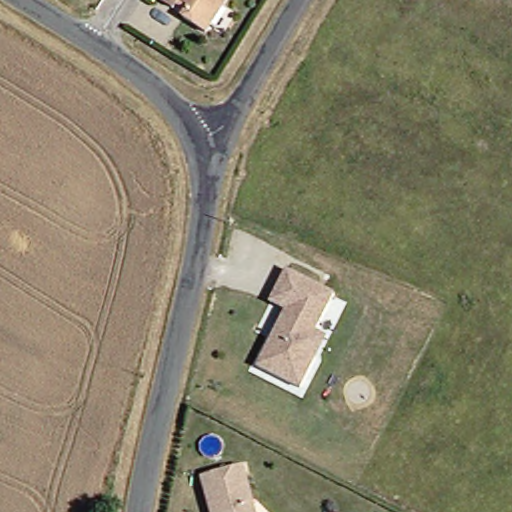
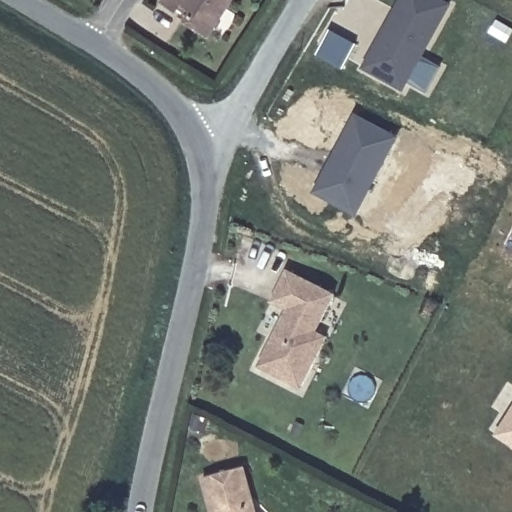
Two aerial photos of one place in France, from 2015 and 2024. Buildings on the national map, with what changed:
unchanged [(178,7),(166,0),(181,0),(178,7)]
unchanged [(212,31),(189,17),(195,6),(184,0),(231,0),(212,31)]
new [(362,72),(401,0),(437,0),(451,7),(403,95),(362,72)]
new [(357,120),(396,141),(358,213),(319,193),(357,120)]
unchanged [(318,361),(302,389),(257,366),(287,310),(272,301),(277,291),(287,271),(337,296),(317,334),(329,339),(318,361)]
new [(512,446),(497,435),(512,412),(512,446)]
unchanged [(243,466),(255,512),(210,512),(202,477),(243,466)]

